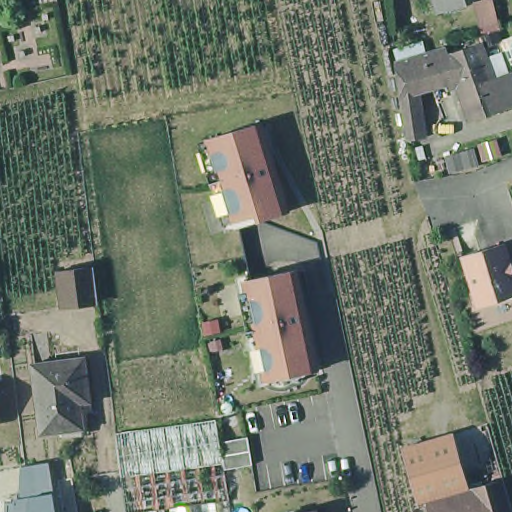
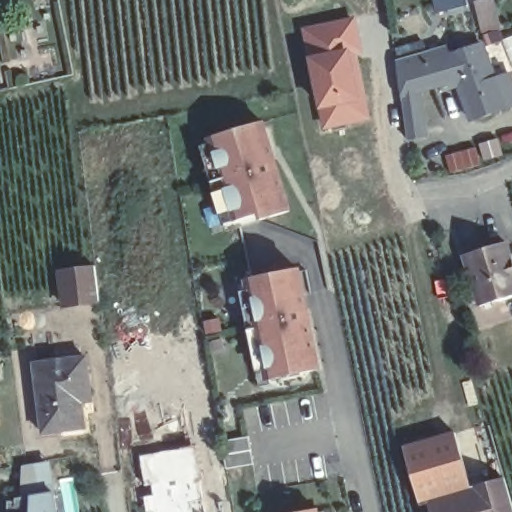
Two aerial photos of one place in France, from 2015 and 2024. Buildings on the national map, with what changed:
unchanged [(467,5),(438,12),(435,0),(466,0),(467,5)]
unchanged [(480,29),(474,5),(487,0),(491,0),(498,24),(480,29)]
new [(308,58),(310,57),(302,27),(356,16),(364,49),(354,51),(369,122),(323,133),(308,58)]
unchanged [(408,67),(404,50),(442,39),(442,40),(455,36),(457,46),(489,35),(503,73),(512,69),(512,100),(479,112),(463,64),(449,68),(446,56),(424,63),(430,97),(431,110),(414,112),(413,100),(408,67)]
unchanged [(225,192),(228,191),(218,159),(215,159),(208,135),(261,118),(273,155),(277,170),(281,182),(288,207),(259,215),(234,223),(233,217),(225,192)]
unchanged [(484,163),(467,170),(457,145),(474,138),(484,163)]
unchanged [(512,289),(482,299),(467,248),(509,235),(512,244),(512,289)]
unchanged [(100,295),(66,299),(61,265),(96,260),(100,295)]
unchanged [(306,291),(309,304),(312,319),(321,366),(304,369),(306,373),(293,375),(287,376),(286,373),(273,376),(266,342),(263,343),(256,309),(258,306),(252,276),(301,266),(306,291)]
unchanged [(258,306),(255,307),(256,309),(227,315),(221,283),(252,276),(258,306)]
unchanged [(65,355),(94,352),(99,392),(89,393),(93,423),(73,426),(65,355)]
unchanged [(50,428),(42,358),(65,355),(73,426),(50,428)]
unchanged [(0,418),(0,413),(1,418),(0,418)]
unchanged [(128,512),(119,430),(216,418),(220,438),(247,435),(251,463),(227,467),(233,512),(151,512),(151,510),(128,512)]
unchanged [(458,426),(473,479),(474,483),(432,495),(422,498),(406,440),(458,426)]
unchanged [(13,502),(13,499),(19,498),(20,466),(47,462),(52,492),(51,492),(54,512),(4,512),(5,502),(13,502)]
unchanged [(474,483),(473,479),(507,469),(512,486),(512,512),(436,512),(432,495),(474,483)]
unchanged [(316,512),(289,512),(314,507),(316,512)]

